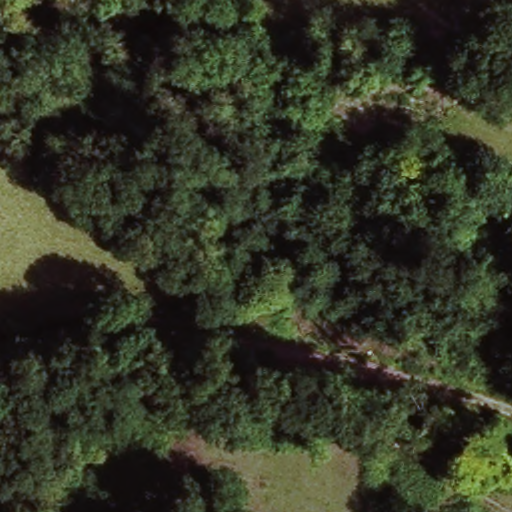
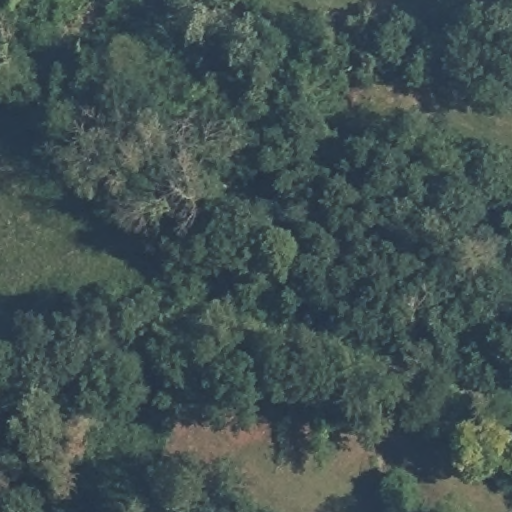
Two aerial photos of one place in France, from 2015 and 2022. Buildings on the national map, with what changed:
[]

